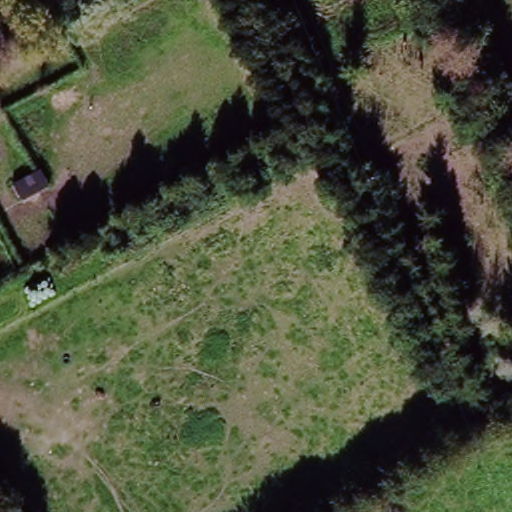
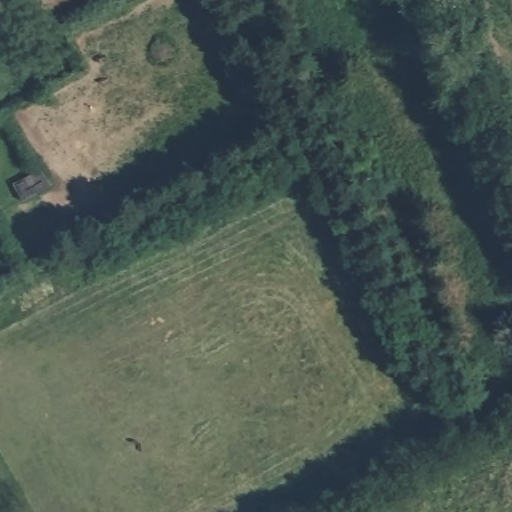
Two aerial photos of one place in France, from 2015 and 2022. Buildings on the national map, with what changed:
unchanged [(52,187),(23,203),(14,186),(41,171),(52,187)]

